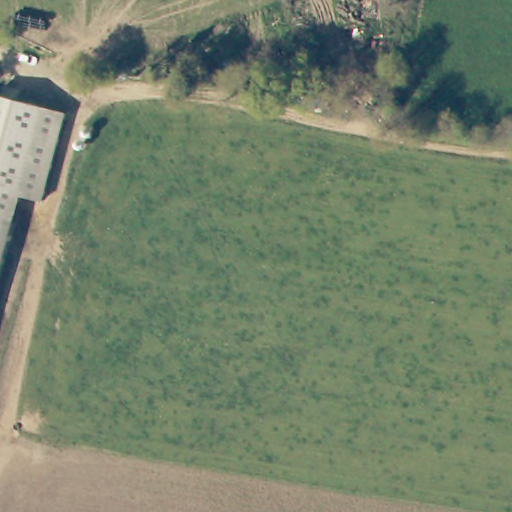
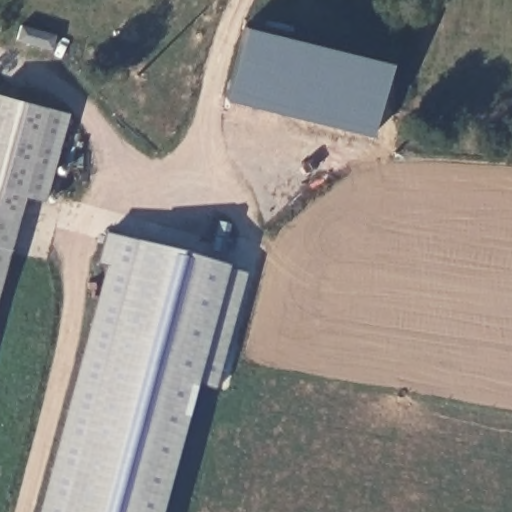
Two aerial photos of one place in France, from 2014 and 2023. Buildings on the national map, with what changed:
unchanged [(69,114),(45,200),(25,194),(18,222),(0,217),(0,94),(9,97),(69,114)]
unchanged [(0,217),(18,222),(0,286),(0,217)]
new [(95,266),(103,236),(114,239),(224,269),(192,386),(157,512),(38,512),(105,269),(95,266)]
new [(224,269),(244,274),(212,392),(192,386),(224,269)]

